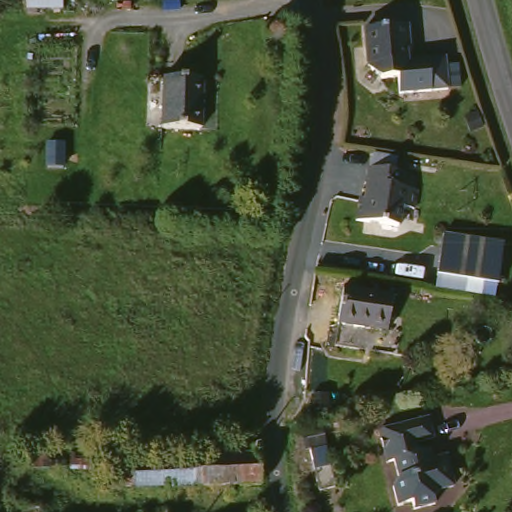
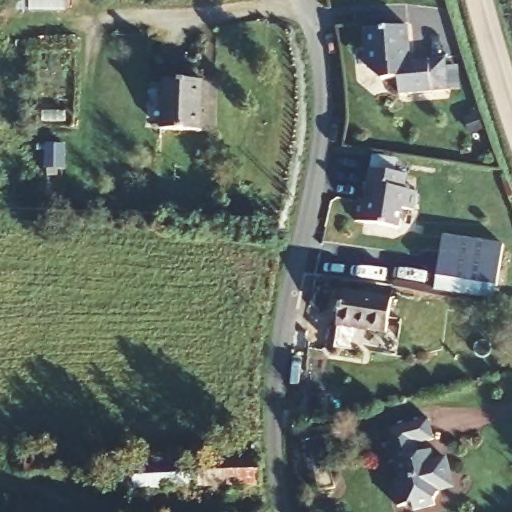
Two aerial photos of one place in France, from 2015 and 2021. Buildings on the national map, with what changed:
unchanged [(402,20),(405,44),(399,44),(402,61),(417,61),(433,60),(435,89),(419,90),(382,93),(382,78),(372,79),(364,61),(360,22),(402,20)]
unchanged [(202,81),(200,130),(160,130),(164,80),(202,81)]
unchanged [(365,171),(402,174),(401,189),(413,191),(411,209),(400,208),(397,228),(354,224),(356,201),(361,201),(365,171)]
unchanged [(430,279),(438,232),(501,240),(496,289),(430,279)]
unchanged [(391,299),(384,336),(338,328),(345,291),(391,299)]
unchanged [(424,446),(427,461),(447,456),(454,485),(440,489),(435,498),(436,505),(416,510),(414,503),(400,506),(395,488),(400,479),(396,461),(393,461),(386,432),(431,421),(435,432),(418,436),(420,447),(424,446)]
unchanged [(149,489),(125,489),(124,484),(122,461),(122,453),(144,454),(143,462),(148,463),(197,459),(196,452),(224,452),(224,436),(245,435),(246,454),(253,453),(258,453),(259,483),(149,489)]
unchanged [(43,507),(43,512),(4,512),(5,504),(43,507)]

